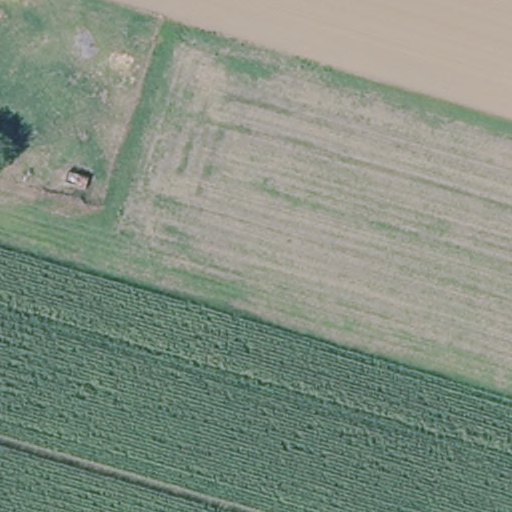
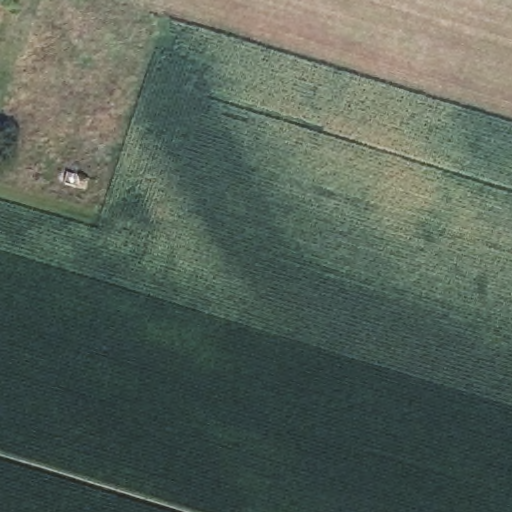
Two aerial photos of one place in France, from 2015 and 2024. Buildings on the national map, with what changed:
unchanged [(85,178),(81,191),(61,185),(63,171),(85,178)]

